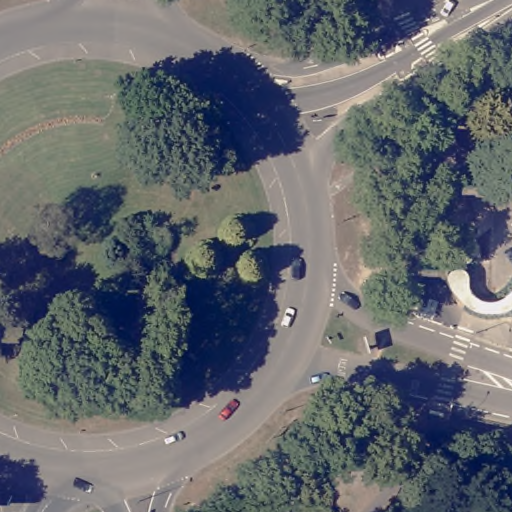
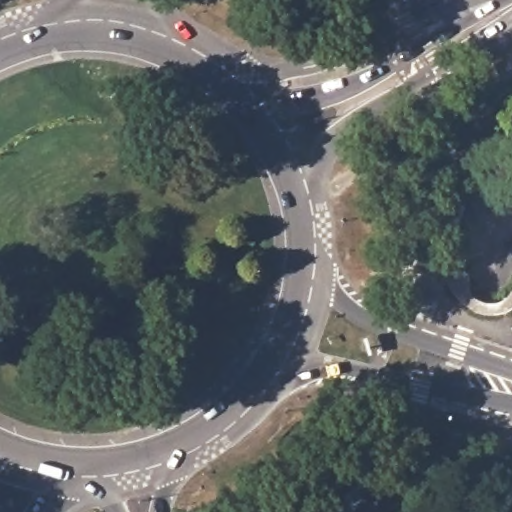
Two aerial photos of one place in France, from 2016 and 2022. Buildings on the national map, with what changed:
[]

